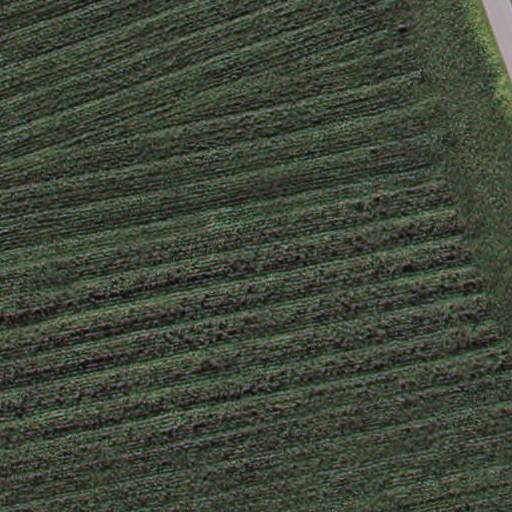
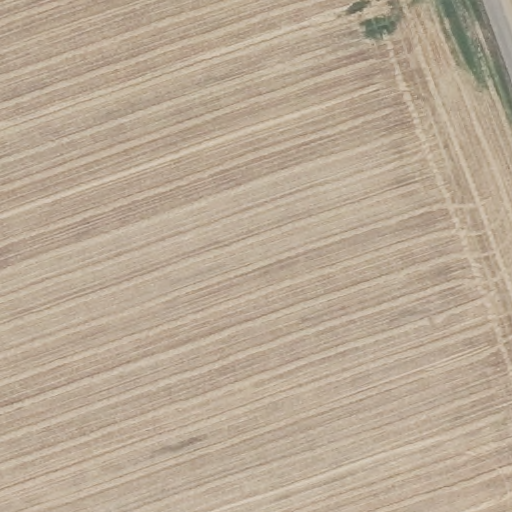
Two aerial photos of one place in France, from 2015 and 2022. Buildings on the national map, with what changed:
[]

